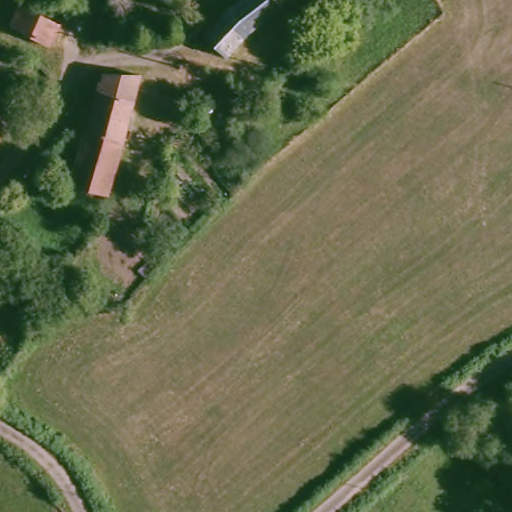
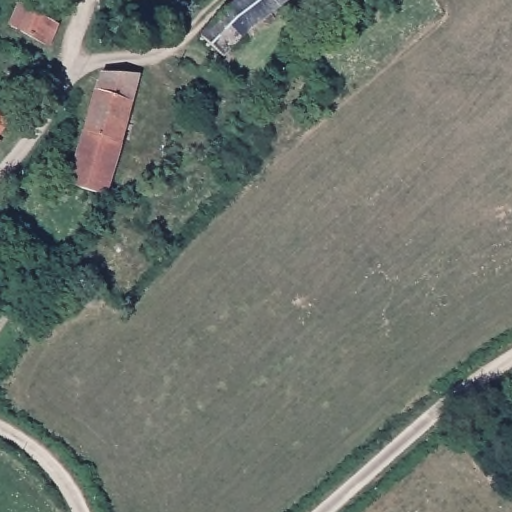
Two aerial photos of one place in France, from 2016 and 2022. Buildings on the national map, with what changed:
unchanged [(221,56),(202,35),(227,8),(238,0),(288,0),(252,25),(221,56)]
unchanged [(47,41),(9,28),(19,3),(57,17),(47,41)]
unchanged [(105,190),(72,178),(99,86),(105,73),(138,75),(105,190)]
unchanged [(0,122),(7,128),(0,136),(0,122)]

